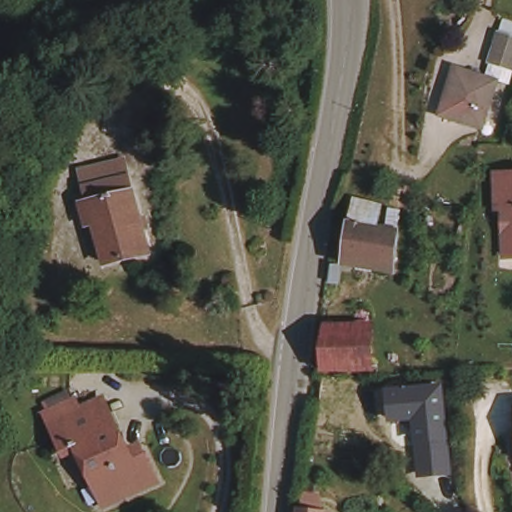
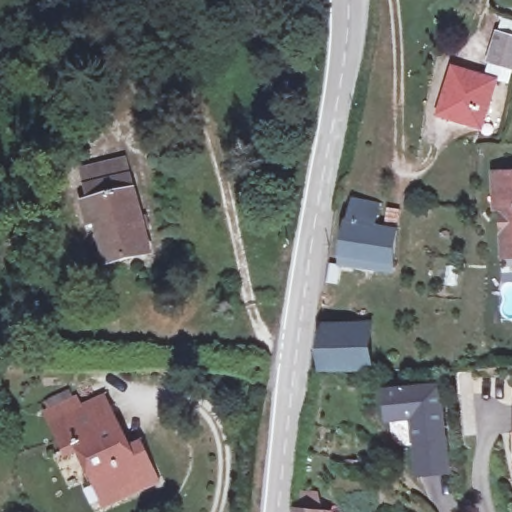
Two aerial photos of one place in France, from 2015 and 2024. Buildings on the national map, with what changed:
unchanged [(495,30),(512,36),(512,51),(507,66),(485,58),(495,30)]
unchanged [(433,114),(449,67),(487,80),(471,127),(433,114)]
unchanged [(500,205),(495,205),(494,171),(512,170),(512,252),(501,252),(501,243),(500,205)]
unchanged [(125,171),(145,248),(103,260),(82,182),(125,171)]
unchanged [(335,265),(348,189),(383,201),(378,230),(398,232),(391,277),(335,265)]
unchanged [(366,363),(318,367),(320,326),(368,326),(366,363)]
unchanged [(418,477),(411,420),(388,422),(385,391),(441,385),(451,473),(418,477)]
unchanged [(142,451),(156,479),(104,503),(76,447),(66,453),(46,416),(77,402),(81,411),(88,407),(103,400),(117,426),(134,456),(142,451)]
unchanged [(318,508),(318,512),(292,512),(293,506),(318,508)]

